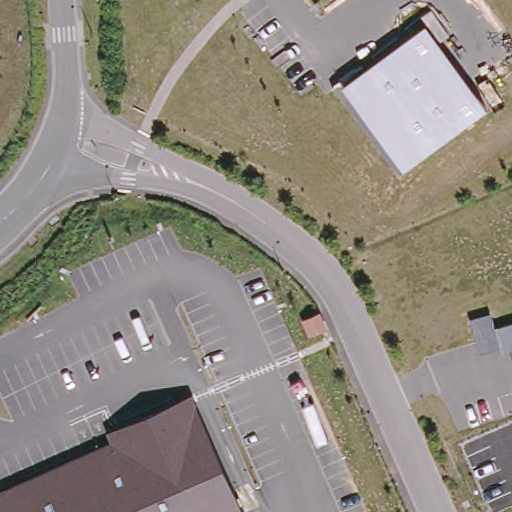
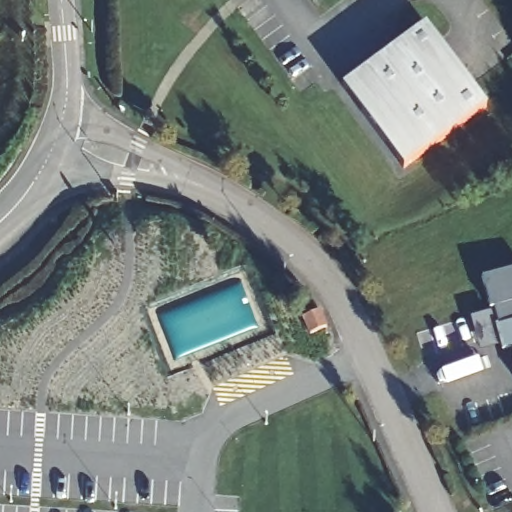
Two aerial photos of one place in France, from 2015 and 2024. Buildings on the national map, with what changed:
unchanged [(425,23),(488,104),(403,167),(342,86),(425,23)]
new [(481,279),(512,270),(512,320),(495,325),(490,309),(481,279)]
unchanged [(490,309),(495,325),(512,320),(512,356),(510,348),(501,351),(500,348),(480,353),(468,316),(490,309)]
demolished [(105,432),(194,394),(246,512),(0,512),(0,489),(110,442),(105,432)]

